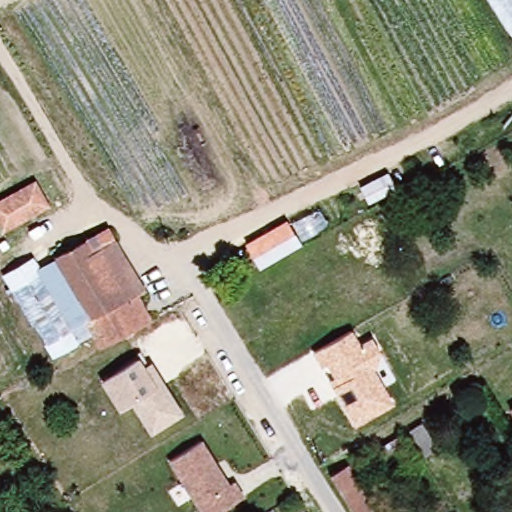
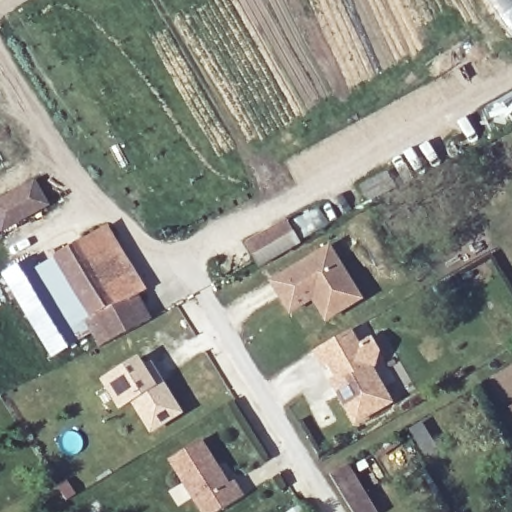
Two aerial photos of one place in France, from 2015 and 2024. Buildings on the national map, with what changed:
unchanged [(512,0),(512,37),(489,0),(512,0)]
unchanged [(1,233),(0,230),(0,200),(35,180),(49,205),(1,233)]
unchanged [(300,245),(260,269),(245,244),(286,220),(300,245)]
unchanged [(123,337),(98,352),(81,323),(74,328),(37,264),(105,225),(143,292),(156,317),(123,337)]
new [(363,299),(324,322),(313,302),(289,315),(268,281),(329,244),(363,299)]
unchanged [(74,328),(82,340),(52,357),(2,273),(31,255),(37,264),(74,328)]
unchanged [(352,330),(360,345),(371,339),(378,352),(372,369),(392,404),(355,425),(313,353),(352,330)]
unchanged [(145,364),(153,361),(184,413),(149,433),(133,403),(117,411),(97,381),(140,354),(145,364)]
unchanged [(203,439),(228,481),(235,476),(246,496),(218,512),(199,512),(168,459),(203,439)]
unchanged [(509,454),(512,453),(512,459),(509,454)]
unchanged [(350,464),(380,512),(354,512),(332,475),(350,464)]

